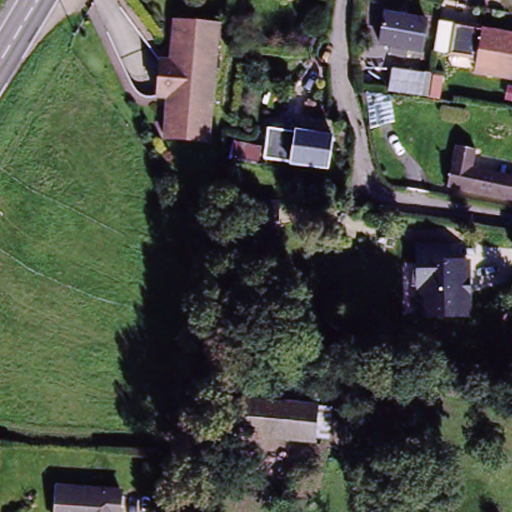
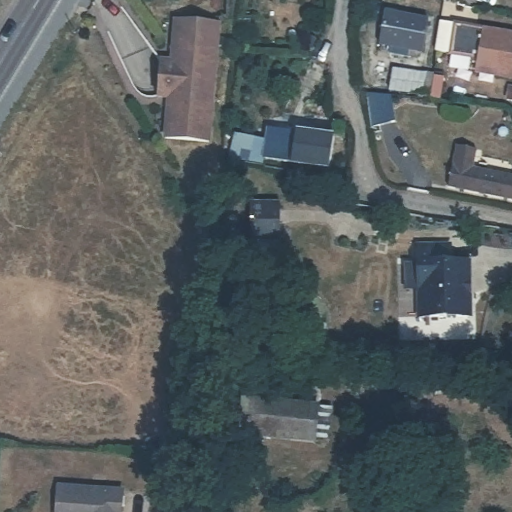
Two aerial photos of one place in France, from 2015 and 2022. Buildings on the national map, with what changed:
unchanged [(426,21),(420,51),(407,49),(406,56),(390,53),(391,46),(380,44),(384,13),(426,21)]
unchanged [(212,142),(170,139),(170,120),(171,98),(160,97),(164,60),(175,61),(178,20),(221,24),(212,142)]
unchanged [(480,74),(475,73),(477,65),(470,64),(471,58),(449,54),(436,52),(433,52),(439,23),(440,23),(454,25),(512,35),(512,79),(498,77),(480,74)]
unchanged [(445,74),(441,96),(408,91),(410,70),(445,74)]
unchanged [(410,96),(415,120),(397,126),(392,127),(387,101),(410,96)]
unchanged [(312,117),(339,121),(336,138),(332,169),(268,160),(272,128),(310,134),(312,117)]
unchanged [(252,147),(261,149),(265,149),(264,155),(262,161),(260,161),(238,156),(239,147),(240,144),(252,147)]
unchanged [(457,165),(461,147),(480,152),(477,170),(512,177),(512,199),(453,187),(457,165)]
unchanged [(278,201),(278,241),(247,241),(248,201),(278,201)]
unchanged [(421,323),(420,257),(420,251),(445,250),(452,250),(452,267),(470,267),(471,285),(467,285),(467,300),(471,300),(471,322),(458,322),(452,316),(447,322),(421,323)]
unchanged [(317,406),(314,442),(240,435),(243,399),(317,406)]
unchanged [(109,490),(125,491),(124,502),(123,512),(59,512),(61,487),(109,490)]

